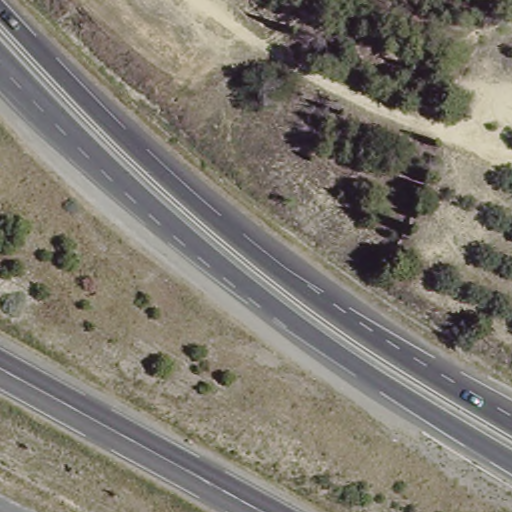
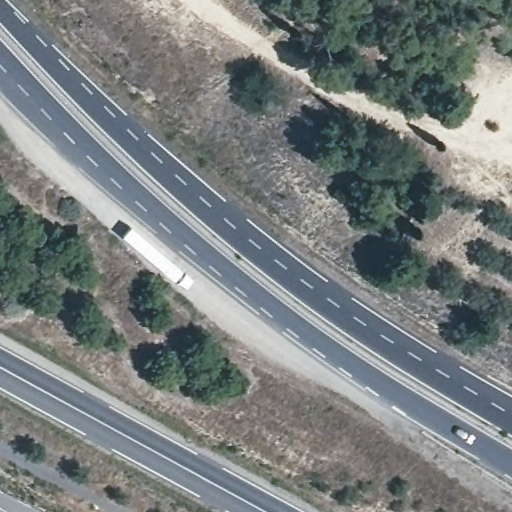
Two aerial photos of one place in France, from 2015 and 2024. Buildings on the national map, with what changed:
[]

